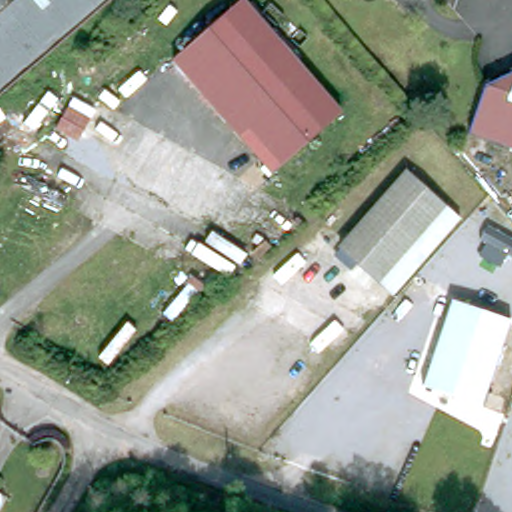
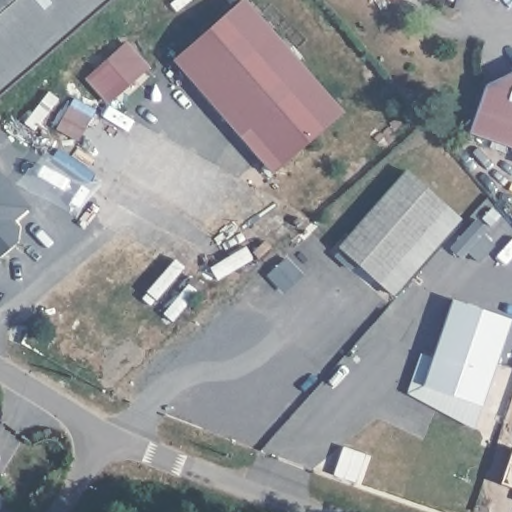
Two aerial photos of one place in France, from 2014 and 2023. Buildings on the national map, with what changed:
unchanged [(0,0),(110,0),(0,95),(0,0)]
unchanged [(242,0),(342,114),(272,173),(175,60),(242,0)]
new [(149,66),(105,105),(84,79),(127,41),(149,66)]
unchanged [(485,84),(512,71),(512,148),(467,135),(485,84)]
new [(74,96),(95,107),(89,117),(84,114),(73,135),(57,126),(74,96)]
unchanged [(410,167),(447,200),(381,276),(344,244),(410,167)]
new [(13,221),(17,226),(17,239),(0,255),(0,175),(28,207),(13,221)]
unchanged [(512,321),(512,323),(482,413),(419,390),(453,300),(512,321)]

